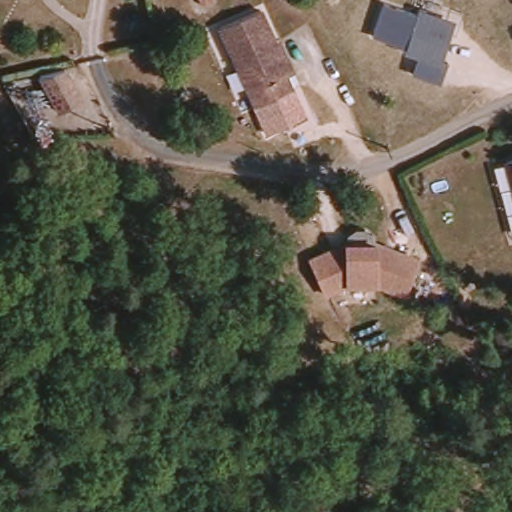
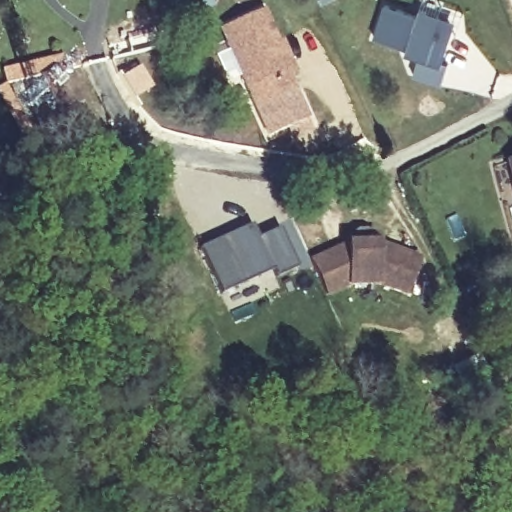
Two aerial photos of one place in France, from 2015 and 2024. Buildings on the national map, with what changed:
unchanged [(455,21),(442,61),(449,63),(442,85),(413,77),(418,61),(404,57),(405,51),(373,41),(384,5),(417,15),(418,9),(455,21)]
unchanged [(252,111),(219,29),(259,13),(270,41),(278,38),(294,76),(282,83),(287,96),(252,111)]
unchanged [(89,103),(62,114),(39,72),(59,68),(69,66),(89,103)]
unchanged [(505,168),(512,165),(512,194),(505,168)]
new [(248,225),(255,239),(276,229),(294,269),(273,278),(270,271),(218,294),(197,248),(248,225)]
unchanged [(406,295),(380,284),(347,285),(327,294),(309,258),(345,241),(375,240),(421,256),(406,295)]

